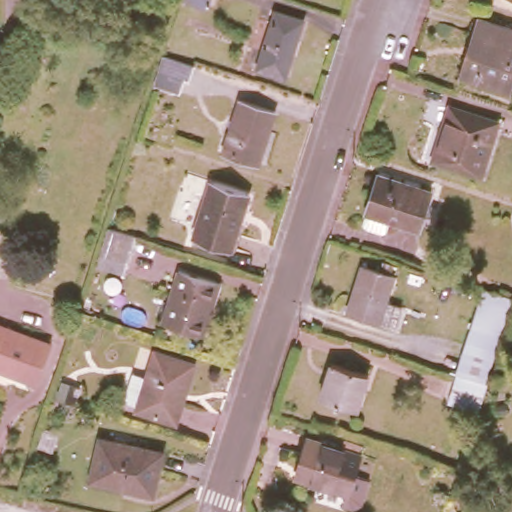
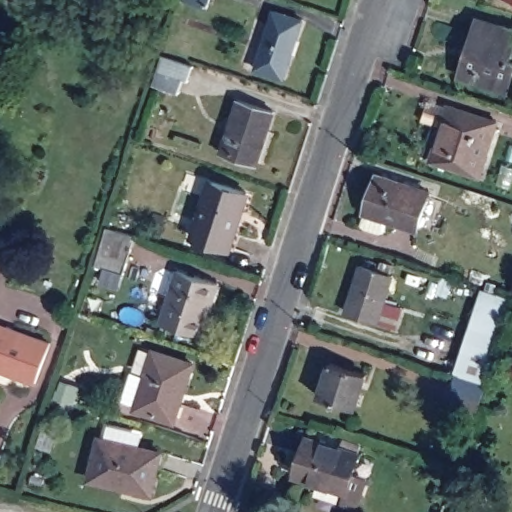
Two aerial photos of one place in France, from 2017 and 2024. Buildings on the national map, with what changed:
unchanged [(209,9),(185,1),(185,0),(212,0),(209,9)]
unchanged [(512,2),(507,0),(512,0),(512,2)]
unchanged [(280,78),(252,69),(270,11),(300,20),(280,78)]
unchanged [(512,64),(512,68),(505,92),(456,76),(475,18),(512,30),(512,45),(507,62),(512,64)]
unchanged [(195,68),(190,82),(185,81),(181,94),(155,86),(165,58),(195,68)]
unchanged [(253,165),(219,153),(235,100),(270,111),(253,165)]
unchanged [(475,176),(427,160),(446,105),(493,121),(475,176)]
unchanged [(385,215),(382,229),(377,232),(361,227),(358,221),(374,171),(427,187),(415,224),(385,215)]
unchanged [(225,250),(189,238),(207,180),(244,192),(225,250)]
unchanged [(97,266),(100,258),(110,228),(137,237),(127,267),(125,275),(97,266)]
unchanged [(381,298),(395,303),(389,323),(342,308),(357,261),(390,271),(381,298)]
unchanged [(192,335),(152,323),(170,270),(210,282),(192,335)]
unchanged [(454,367),(481,284),(511,293),(485,377),(454,367)]
unchanged [(45,344),(31,383),(0,372),(0,327),(45,344)]
unchanged [(171,421),(132,408),(132,405),(119,400),(127,371),(142,375),(150,350),(189,363),(171,421)]
unchanged [(364,374),(353,408),(315,397),(325,362),(364,374)]
unchanged [(472,407),(444,398),(453,369),(480,378),(472,407)]
unchanged [(157,451),(149,493),(86,478),(95,437),(157,451)]
unchanged [(292,468),(302,437),(356,454),(344,493),(300,479),(290,476),(292,468)]

